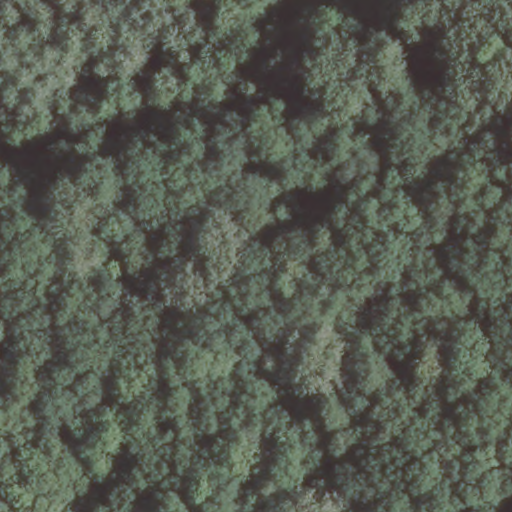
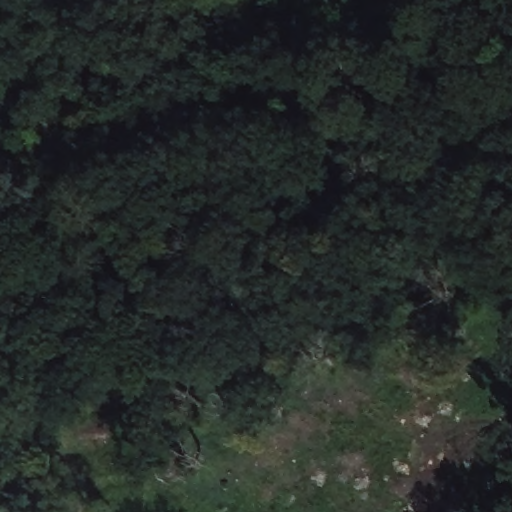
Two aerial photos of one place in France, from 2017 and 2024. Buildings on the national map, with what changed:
unchanged [(409,0),(410,1),(400,12),(390,2),(392,0),(409,0)]

